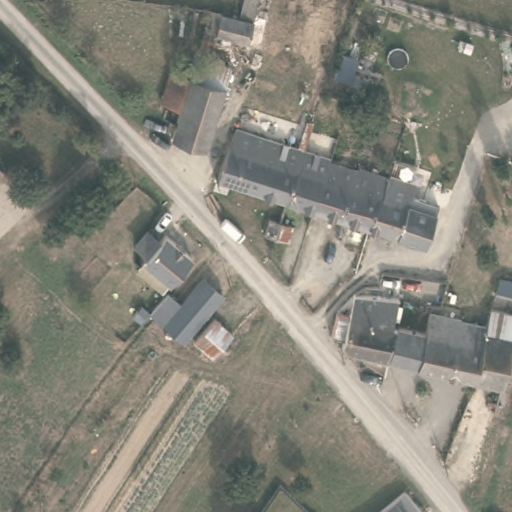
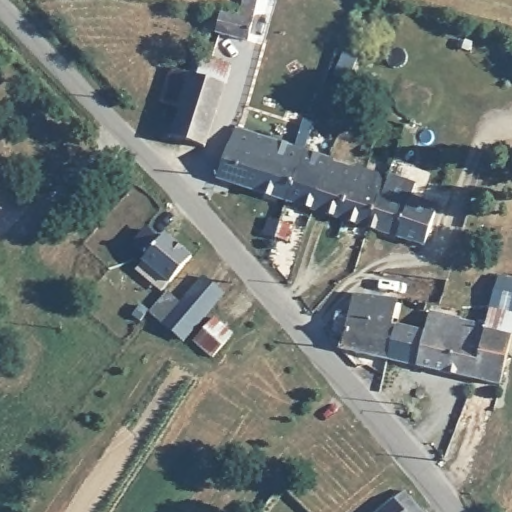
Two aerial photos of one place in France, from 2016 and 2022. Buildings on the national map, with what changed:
unchanged [(260,0),(254,20),(266,24),(262,44),(213,30),(206,51),(198,49),(208,10),(238,17),(243,0),(260,0)]
unchanged [(172,136),(180,107),(160,101),(170,67),(198,75),(205,54),(232,64),(226,85),(205,149),(172,136)]
unchanged [(220,183),(237,131),(306,154),(289,206),(220,183)]
unchanged [(289,206),(306,154),(331,161),(330,166),(314,213),(289,206)]
unchanged [(330,166),(356,175),(357,170),(388,180),(370,233),(314,213),(330,166)]
unchanged [(1,175),(0,177),(0,174),(1,175)]
unchanged [(388,180),(392,183),(395,188),(411,194),(412,199),(423,203),(422,212),(436,215),(424,253),(370,233),(388,180)]
unchanged [(287,240),(277,238),(263,233),(268,217),(282,221),(293,225),(287,240)]
unchanged [(142,262),(155,244),(164,235),(186,254),(191,260),(170,285),(142,262)]
unchanged [(500,274),(512,276),(512,293),(495,288),(500,274)]
unchanged [(203,281),(217,293),(222,285),(228,279),(234,285),(181,342),(163,326),(203,281)]
unchanged [(338,316),(343,318),(351,319),(357,299),(398,304),(394,329),(386,362),(340,351),(329,339),(338,316)]
unchanged [(433,314),(437,315),(484,329),(491,310),(512,315),(512,343),(508,361),(496,404),(485,401),(488,387),(416,369),(429,327),(433,314)]
unchanged [(214,322),(230,338),(212,359),(194,343),(214,322)]
unchanged [(394,329),(395,330),(415,334),(418,325),(429,327),(416,369),(386,362),(394,329)]
unchanged [(409,488),(429,512),(380,512),(409,488)]

